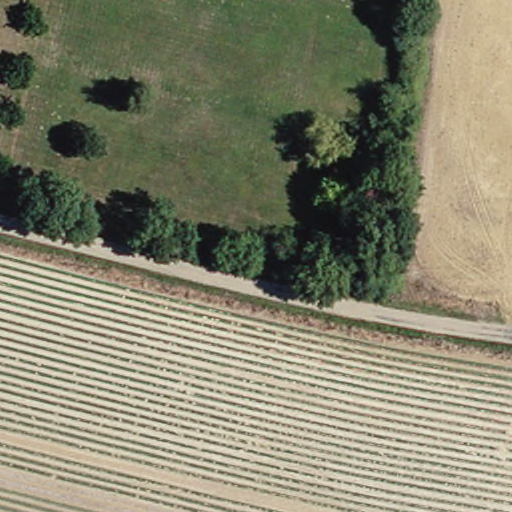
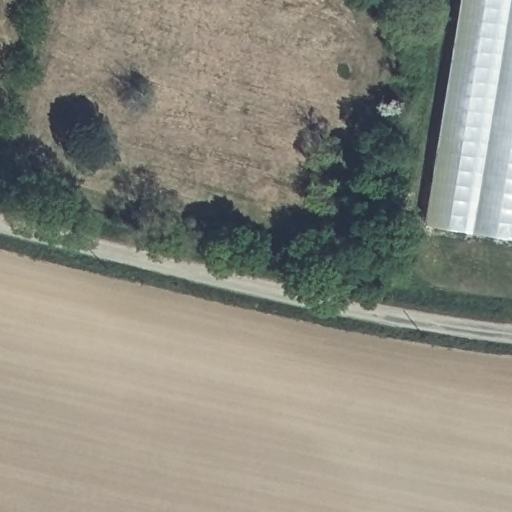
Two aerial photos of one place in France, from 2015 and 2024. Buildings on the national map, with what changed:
new [(428,225),(464,0),(512,0),(512,239),(428,225)]

